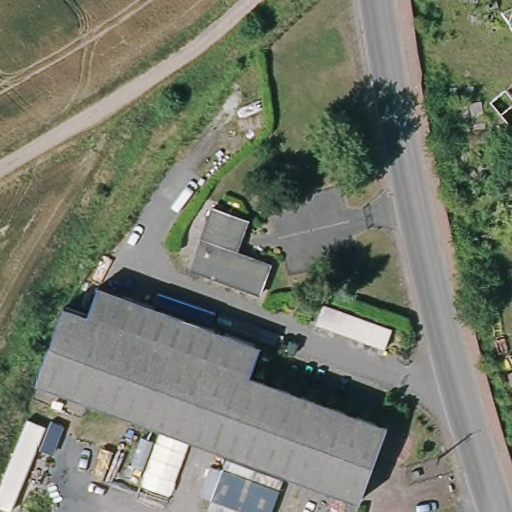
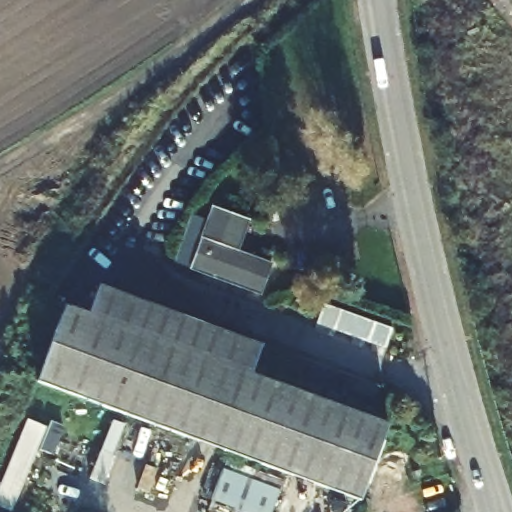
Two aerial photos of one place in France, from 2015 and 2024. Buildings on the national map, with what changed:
unchanged [(199,243),(213,208),(248,222),(236,255),(199,243)]
unchanged [(236,255),(269,267),(259,297),(189,270),(199,243),(236,255)]
unchanged [(103,286),(263,346),(251,377),(111,324),(91,317),(103,286)]
unchanged [(316,320),(324,301),(392,327),(384,346),(316,320)]
unchanged [(111,324),(251,377),(386,428),(359,504),(38,382),(66,308),(91,317),(111,324)]
unchanged [(48,423),(11,507),(0,502),(0,484),(29,415),(48,423)]
unchanged [(415,466),(419,471),(414,476),(409,470),(415,466)]

